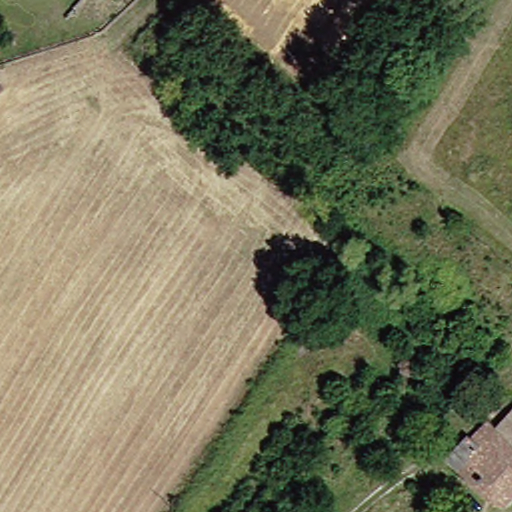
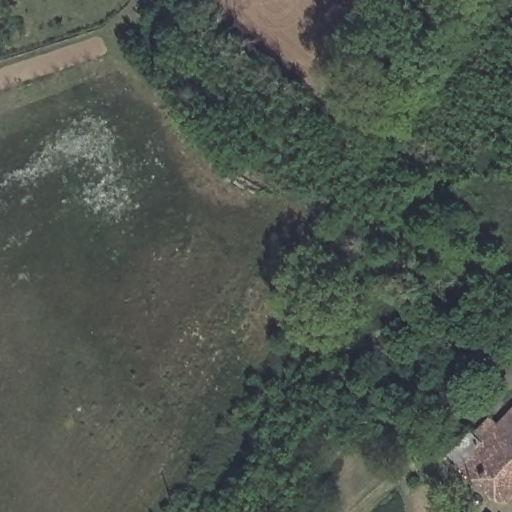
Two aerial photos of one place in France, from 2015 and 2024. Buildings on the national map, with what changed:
unchanged [(487,375),(498,362),(505,367),(494,380),(487,375)]
unchanged [(490,495),(442,450),(461,427),(467,431),(482,412),(490,419),(511,395),(512,396),(512,471),(490,495)]

